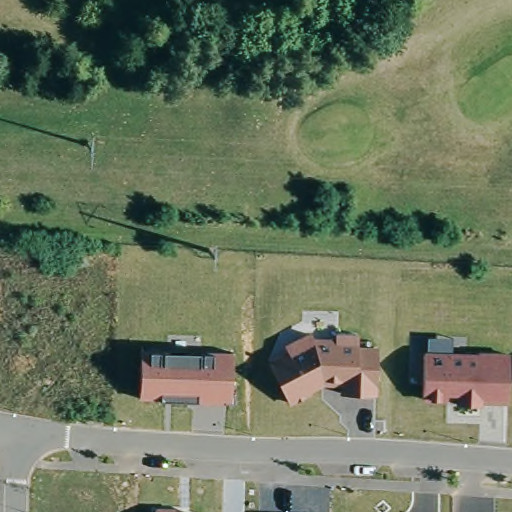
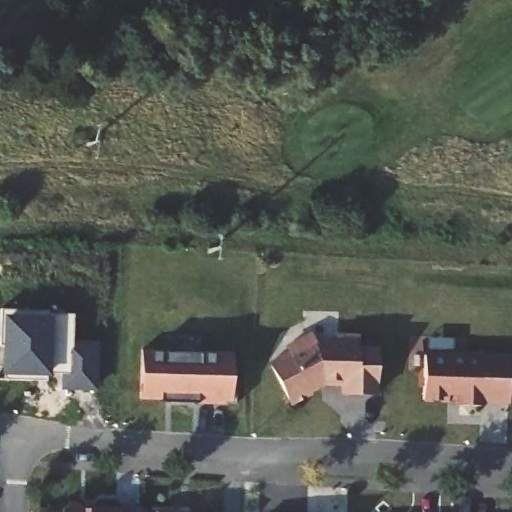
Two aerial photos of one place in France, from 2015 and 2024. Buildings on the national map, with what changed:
new [(1,345),(0,346),(0,328),(1,309),(73,312),(73,341),(98,342),(97,390),(61,389),(61,373),(50,373),(50,376),(47,376),(46,380),(4,379),(5,375),(0,374),(1,345)]
unchanged [(292,354),(287,344),(311,332),(314,338),(334,339),(335,330),(360,332),(359,346),(379,347),(377,393),(341,392),(341,386),(325,385),(291,402),(271,368),(292,354)]
unchanged [(210,352),(210,350),(234,350),(233,400),(221,400),(221,403),(160,401),(160,399),(139,398),(140,350),(210,352)]
unchanged [(479,357),(479,355),(510,356),(508,403),(480,402),(480,407),(458,406),(458,396),(447,396),(447,401),(423,400),(425,356),(479,357)]
new [(140,512),(62,512),(62,509),(67,504),(74,505),(84,510),(121,511),(122,506),(140,506),(140,512)]
unchanged [(177,507),(177,511),(191,512),(157,512),(157,508),(177,507)]

